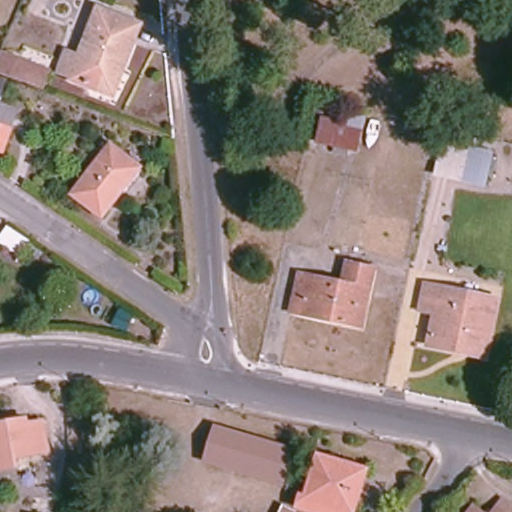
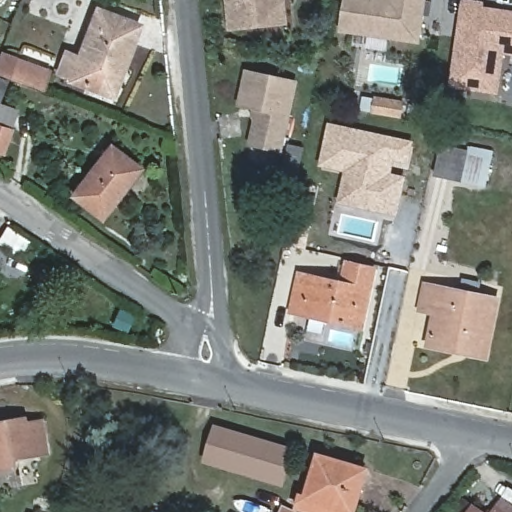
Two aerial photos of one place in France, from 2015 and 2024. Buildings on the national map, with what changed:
new [(228,31),(225,0),(286,0),(288,23),(228,31)]
new [(338,33),(343,0),(426,0),(420,44),(338,33)]
new [(512,55),(505,54),(498,94),(449,87),(461,0),(471,0),(484,1),(484,6),(512,10),(512,55)]
unchanged [(69,84),(71,80),(57,76),(66,55),(77,60),(96,11),(140,28),(113,101),(69,84)]
unchanged [(20,63),(49,75),(42,91),(12,80),(20,63)]
new [(243,69),(298,81),(283,154),(248,146),(253,119),(250,119),(251,110),(236,106),(243,69)]
unchanged [(6,81),(0,99),(0,79),(6,81)]
new [(401,119),(372,114),(375,99),(404,104),(401,119)]
unchanged [(0,154),(0,108),(15,112),(0,154)]
demolished [(318,146),(325,119),(343,122),(344,114),(366,119),(361,155),(318,146)]
new [(339,202),(341,193),(346,170),(320,164),(328,126),(409,143),(405,160),(390,158),(386,175),(401,179),(396,204),(394,213),(339,202)]
unchanged [(70,199),(112,146),(136,165),(142,170),(125,189),(100,223),(70,199)]
unchanged [(463,183),(469,154),(471,148),(495,153),(487,190),(463,183)]
unchanged [(444,149),(467,154),(463,178),(438,174),(444,149)]
unchanged [(377,271),(362,330),(292,315),(301,277),(345,286),(349,265),(377,271)]
unchanged [(437,313),(421,309),(427,283),(444,286),(498,298),(487,357),(430,345),(437,313)]
unchanged [(29,416),(29,422),(46,420),(51,452),(17,458),(18,465),(0,468),(0,421),(29,416)]
unchanged [(209,460),(220,424),(249,434),(238,469),(209,460)]
unchanged [(249,434),(294,448),(283,483),(238,469),(249,434)]
unchanged [(307,499),(313,501),(326,460),(373,474),(362,512),(312,512),(305,510),(307,499)]
unchanged [(503,504),(506,506),(512,510),(512,512),(497,512),(503,504)]
unchanged [(1,509),(1,512),(0,512),(0,509),(1,509)]
unchanged [(297,512),(290,512),(291,509),(297,512)]

